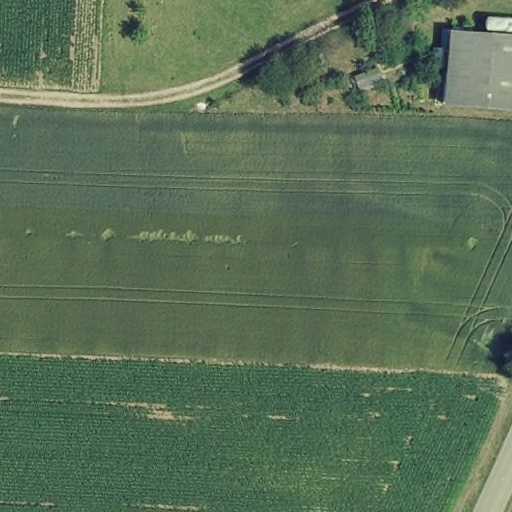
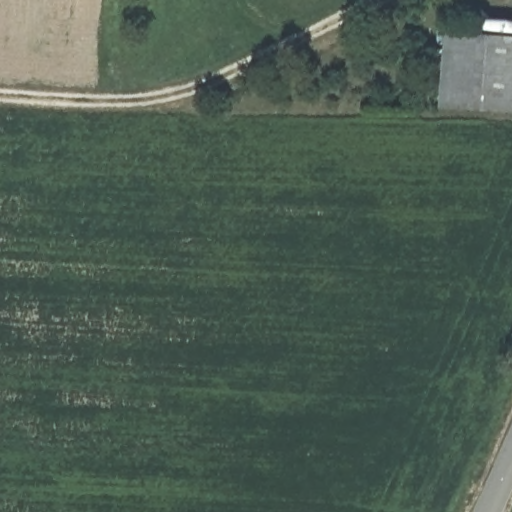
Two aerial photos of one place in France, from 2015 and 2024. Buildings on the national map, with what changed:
unchanged [(447,106),(453,34),(512,38),(512,108),(447,106)]

